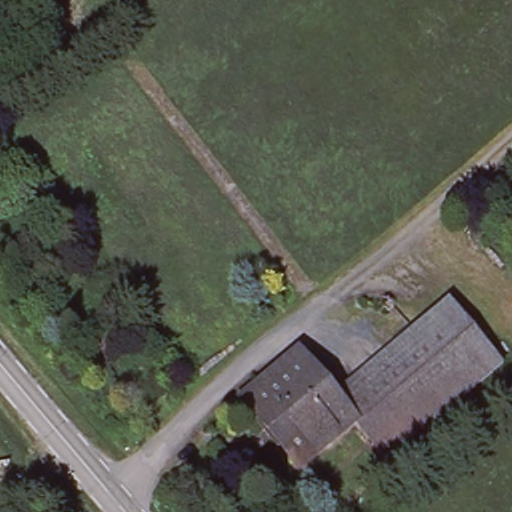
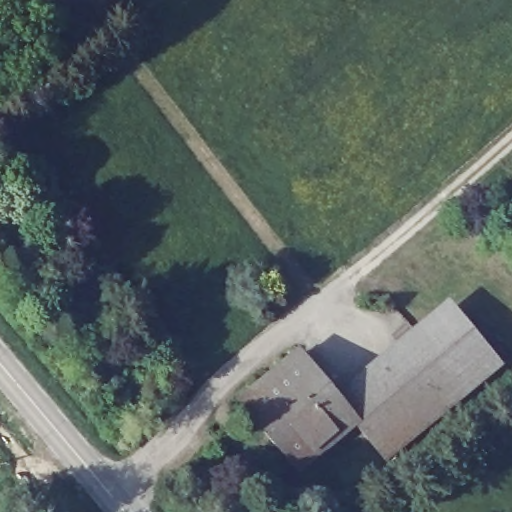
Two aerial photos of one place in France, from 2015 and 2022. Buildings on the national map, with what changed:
unchanged [(356,392),(457,309),(500,361),(383,462),(353,426),(299,471),(239,403),(295,356),(333,401),(351,386),(356,392)]

